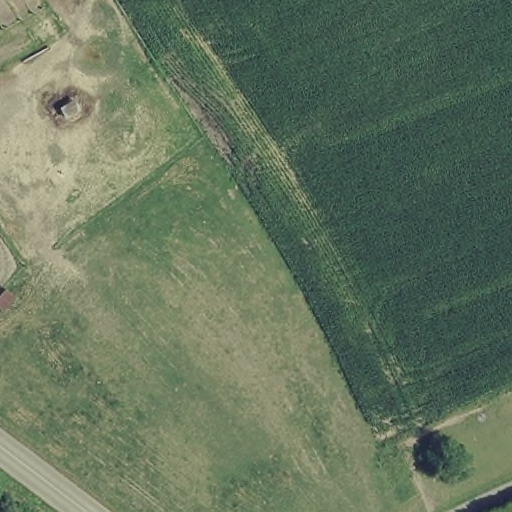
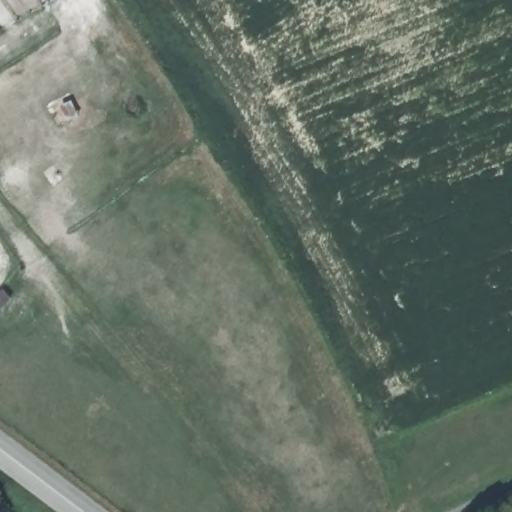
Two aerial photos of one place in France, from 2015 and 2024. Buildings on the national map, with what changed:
[]

